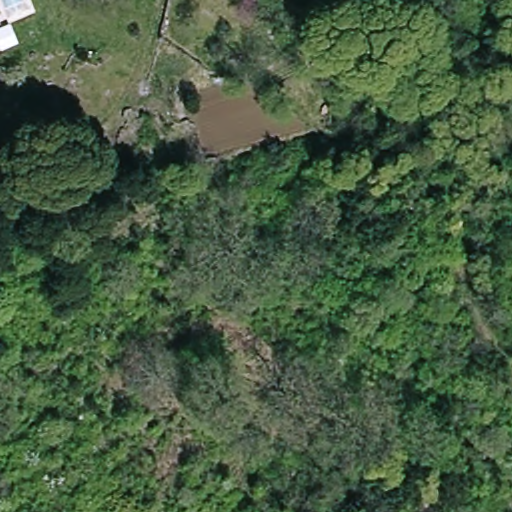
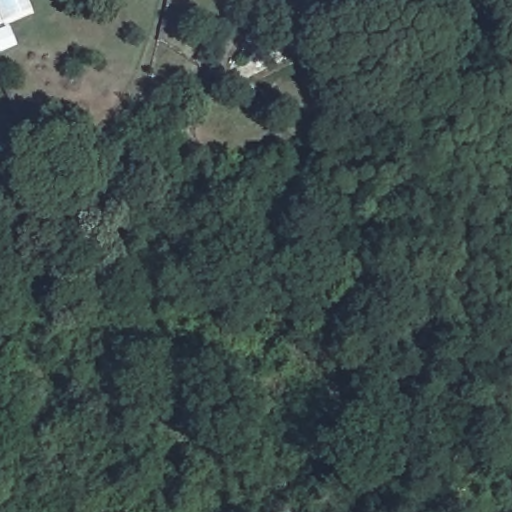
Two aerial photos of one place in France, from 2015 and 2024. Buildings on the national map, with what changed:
[]

